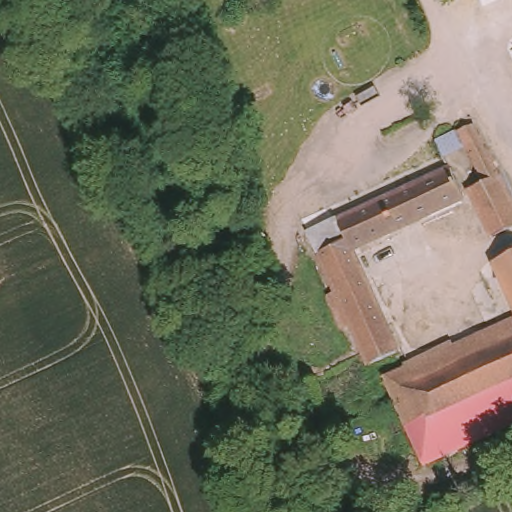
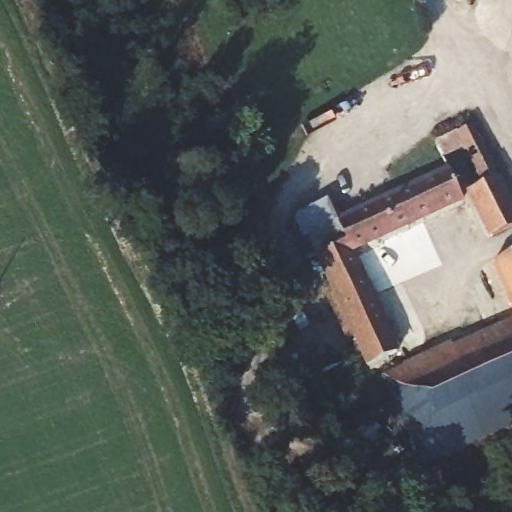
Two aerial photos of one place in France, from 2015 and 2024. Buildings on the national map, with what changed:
unchanged [(463,139),(440,150),(432,127),(452,119),(460,116),(464,121),(475,117),(512,194),(512,230),(497,236),(477,193),(487,188),(463,139)]
unchanged [(360,204),(390,190),(448,168),(462,202),(359,248),(400,342),(367,358),(320,247),(352,234),(342,212),(360,204)]
unchanged [(512,263),(512,299),(499,268),(512,263)]
unchanged [(453,358),(460,372),(477,364),(472,349),(512,330),(512,424),(427,463),(403,409),(392,386),(453,358)]

